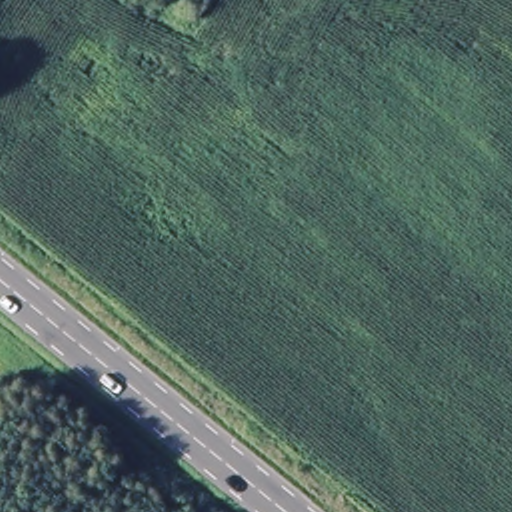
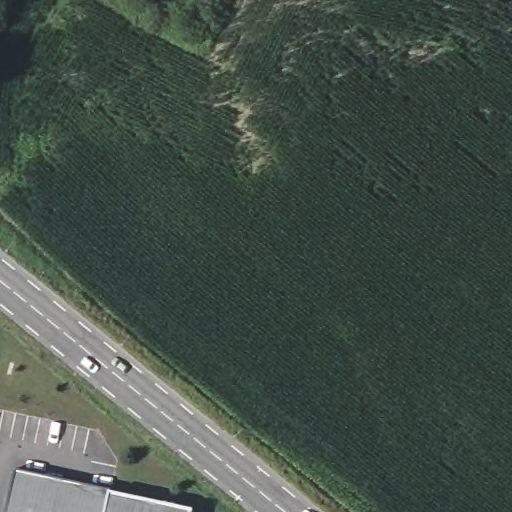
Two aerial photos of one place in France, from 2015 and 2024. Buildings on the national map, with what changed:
new [(109,493),(190,511),(190,512),(7,512),(15,472),(109,493)]

